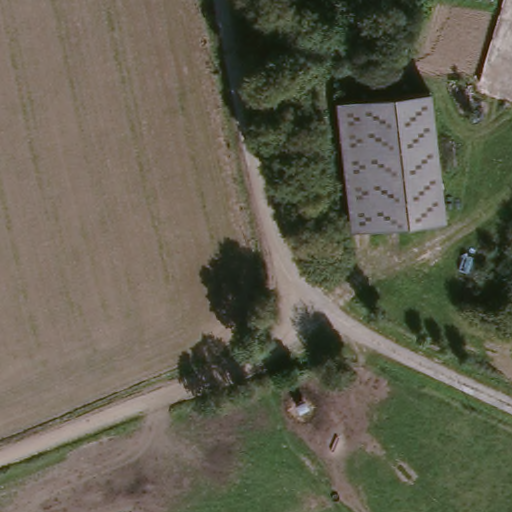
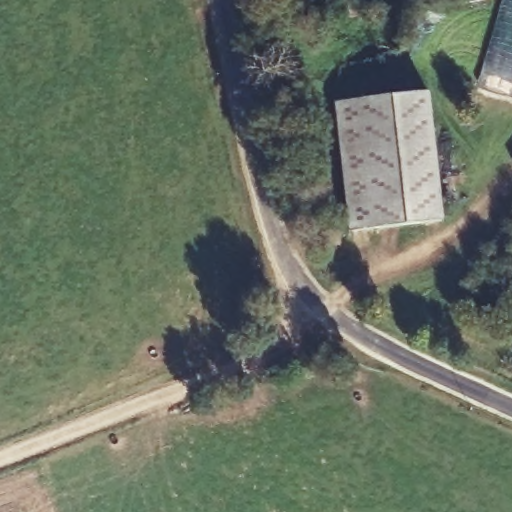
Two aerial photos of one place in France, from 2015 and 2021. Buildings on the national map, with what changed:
unchanged [(338,104),(431,91),(448,217),(355,230),(338,104)]

